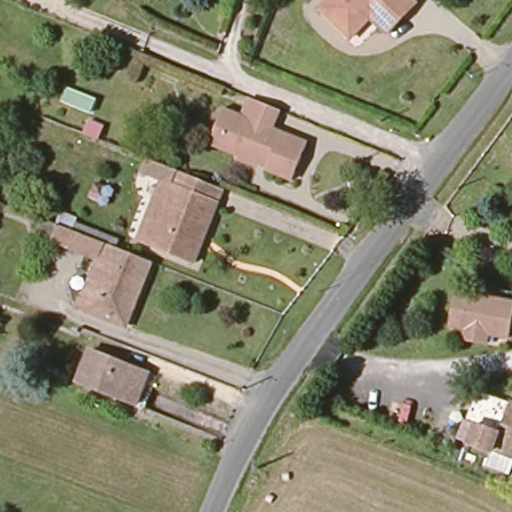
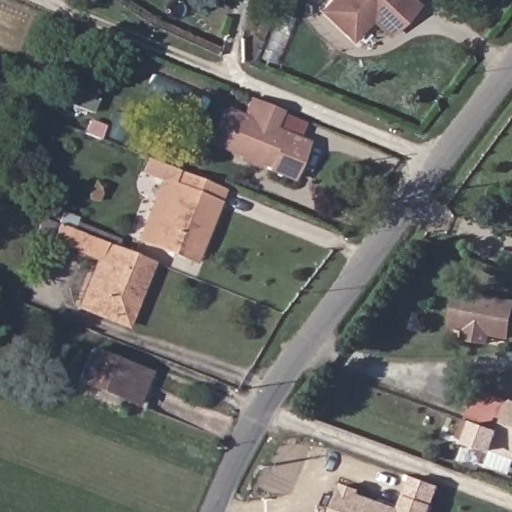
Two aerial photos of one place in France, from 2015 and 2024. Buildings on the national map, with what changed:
unchanged [(354,39),(325,10),(334,0),(415,0),(420,5),(408,17),(391,35),(374,19),(354,39)]
unchanged [(246,160),(215,148),(220,136),(230,114),(248,121),(254,103),(285,115),(278,133),(312,147),(298,183),(273,173),(273,171),(264,167),(246,160)]
unchanged [(103,127),(99,139),(85,134),(89,122),(103,127)]
unchanged [(192,262),(143,242),(166,183),(146,175),(151,163),(192,179),(228,193),(209,242),(200,265),(192,262)]
unchanged [(104,184),(101,192),(93,190),(95,181),(104,184)]
unchanged [(157,265),(131,328),(86,311),(106,263),(56,243),(63,227),(113,247),(128,253),(157,265)]
unchanged [(468,337),(470,327),(454,324),(459,290),(512,298),(512,330),(512,333),(492,330),(490,340),(468,337)]
unchanged [(94,354),(153,377),(140,407),(81,383),(94,354)]
unchanged [(498,456),(475,448),(465,444),(472,425),(482,429),(505,437),(512,417),(512,478),(492,471),(498,456)]
new [(432,512),(332,512),(344,483),(363,489),(362,493),(400,507),(412,476),(442,487),(432,512)]

